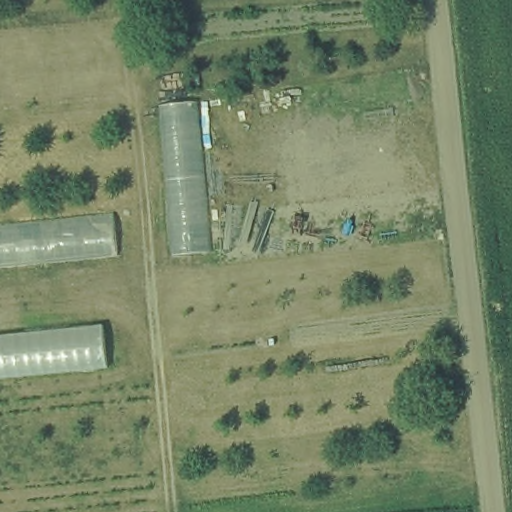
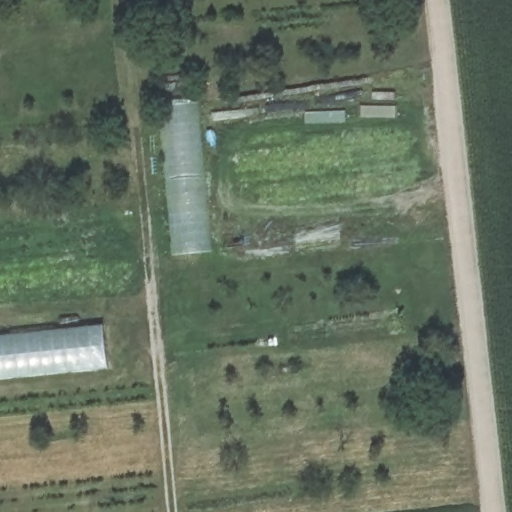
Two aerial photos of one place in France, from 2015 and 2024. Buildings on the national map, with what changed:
unchanged [(206,250),(175,255),(160,107),(191,100),(206,250)]
demolished [(0,266),(0,225),(120,211),(125,253),(0,266)]
unchanged [(110,324),(113,372),(0,383),(0,334),(110,324)]

